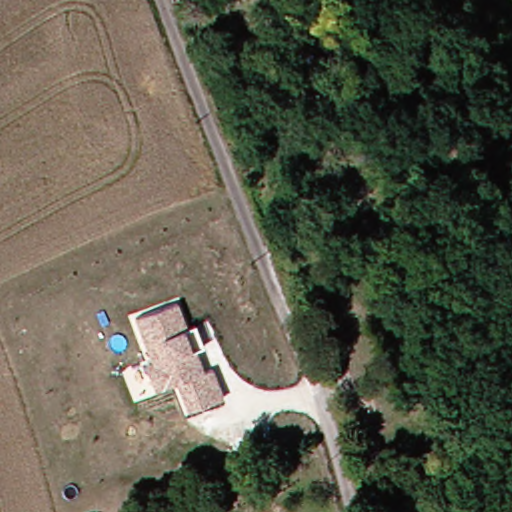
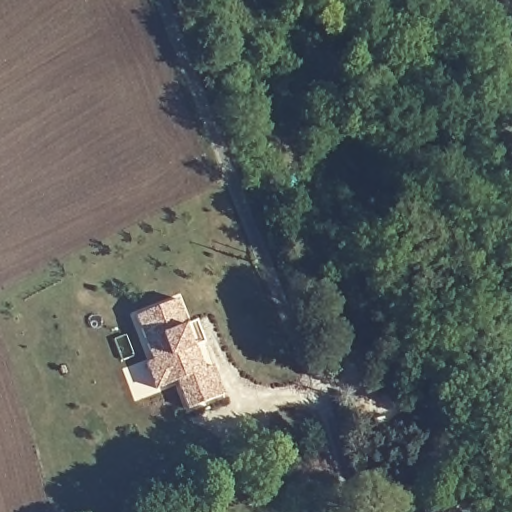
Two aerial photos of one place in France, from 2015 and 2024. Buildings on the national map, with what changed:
unchanged [(209,363),(220,390),(186,406),(175,378),(155,387),(146,363),(152,360),(134,315),(173,298),(184,323),(192,320),(200,341),(192,345),(201,366),(209,363)]

